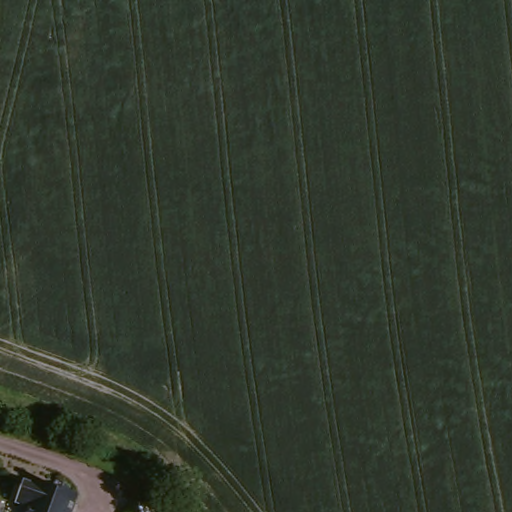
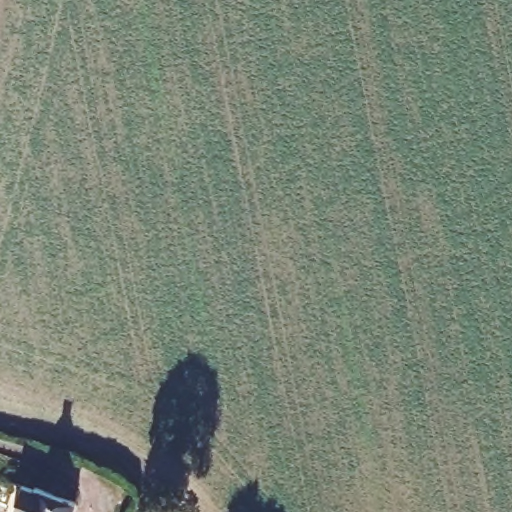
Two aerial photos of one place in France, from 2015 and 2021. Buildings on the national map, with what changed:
unchanged [(27,510),(15,505),(23,486),(35,490),(35,485),(77,500),(73,512),(26,512),(27,510)]

